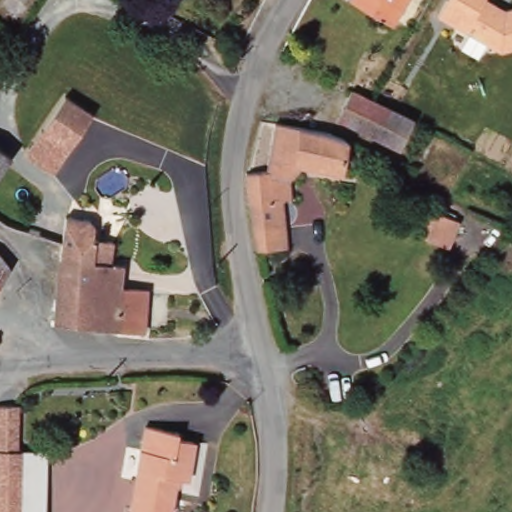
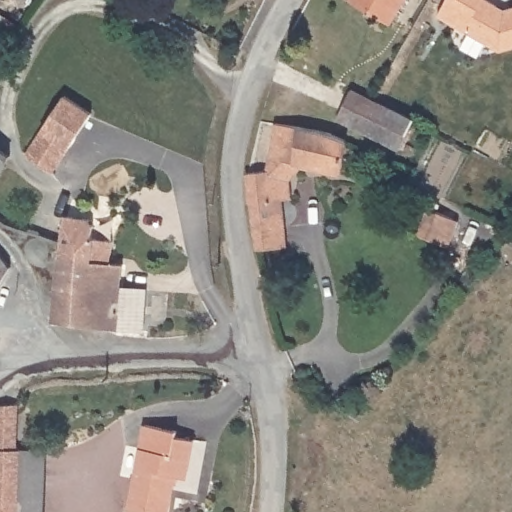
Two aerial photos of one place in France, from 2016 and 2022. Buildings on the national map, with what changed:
unchanged [(394,26),(353,3),(354,0),(408,0),(394,26)]
unchanged [(501,9),(512,6),(512,52),(493,58),(430,21),(441,0),(484,0),(501,9)]
unchanged [(379,107),(414,125),(400,152),(367,134),(337,119),(353,93),(373,103),(379,107)]
unchanged [(94,114),(55,175),(28,157),(67,96),(94,114)]
unchanged [(250,172),(269,170),(279,126),(319,132),(332,134),(346,140),(339,171),(306,166),(289,180),(290,197),(285,198),(290,226),(294,247),(262,252),(259,232),(250,172)]
unchanged [(11,157),(0,173),(0,150),(11,157)]
unchanged [(463,221),(456,247),(433,237),(440,214),(463,221)]
unchanged [(62,283),(65,246),(71,216),(95,225),(98,232),(97,243),(115,244),(115,267),(129,268),(127,291),(139,293),(147,294),(152,295),(146,336),(121,332),(121,331),(59,321),(62,283)]
unchanged [(10,268),(0,284),(0,255),(10,268)]
unchanged [(19,403),(19,452),(17,512),(0,512),(0,404),(19,403)]
unchanged [(185,437),(184,444),(200,447),(189,512),(138,512),(153,431),(185,437)]
unchanged [(45,512),(17,512),(19,452),(46,453),(45,512)]

